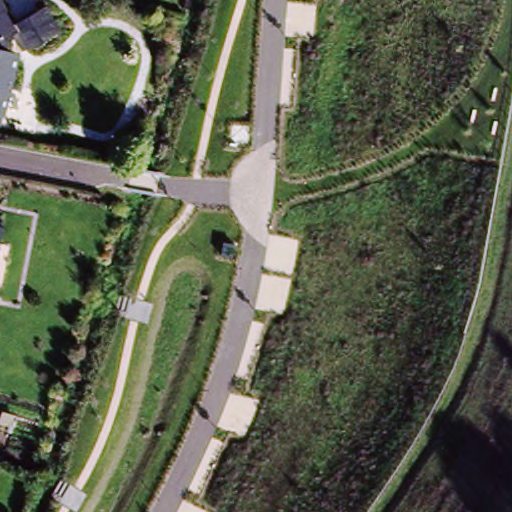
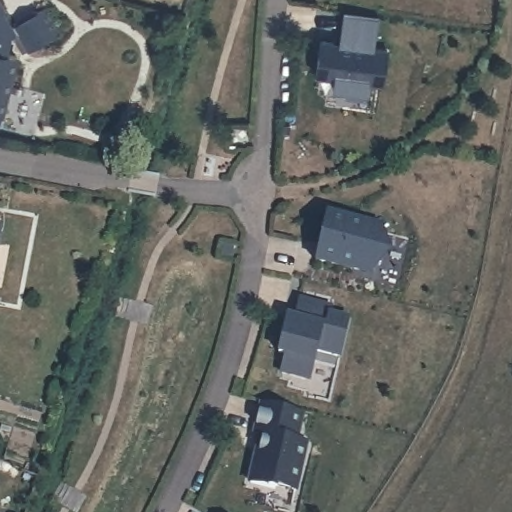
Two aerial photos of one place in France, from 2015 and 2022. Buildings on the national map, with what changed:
unchanged [(6,27),(41,7),(57,33),(23,53),(12,33),(5,38),(2,57),(11,59),(0,116),(0,17),(6,27)]
unchanged [(0,12),(0,8),(1,11),(0,12)]
new [(323,41),(342,44),(347,12),(380,17),(375,49),(390,51),(385,86),(370,84),(368,94),(335,89),(337,79),(317,76),(323,41)]
new [(327,216),(375,226),(384,235),(387,247),(385,260),(376,270),(363,273),(317,262),(327,216)]
new [(289,317),(297,320),(302,300),(334,307),(332,314),(351,318),(342,357),(318,351),(312,380),(283,373),(287,355),(281,353),(289,317)]
new [(259,452),(261,453),(266,435),(257,432),(264,403),(305,413),(299,441),(309,443),(298,490),(278,485),(277,488),(251,482),(259,452)]

